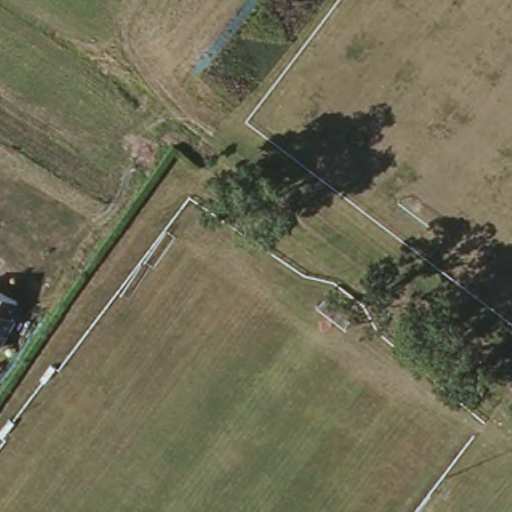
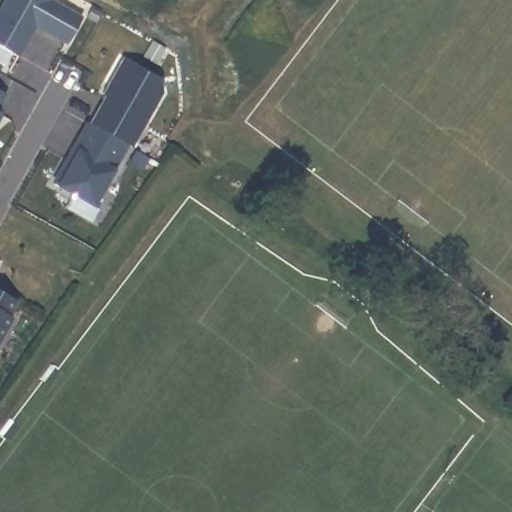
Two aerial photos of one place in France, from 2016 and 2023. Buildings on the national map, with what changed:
new [(72,42),(47,27),(50,23),(44,19),(24,55),(0,42),(0,18),(10,0),(57,0),(87,17),(72,42)]
new [(169,82),(170,88),(138,146),(134,145),(99,205),(61,182),(72,164),(70,162),(92,122),(95,124),(112,95),(109,94),(127,59),(169,82)]
new [(10,95),(1,110),(5,114),(0,123),(0,89),(10,95)]
unchanged [(18,298),(10,313),(15,316),(0,340),(0,288),(18,298)]

